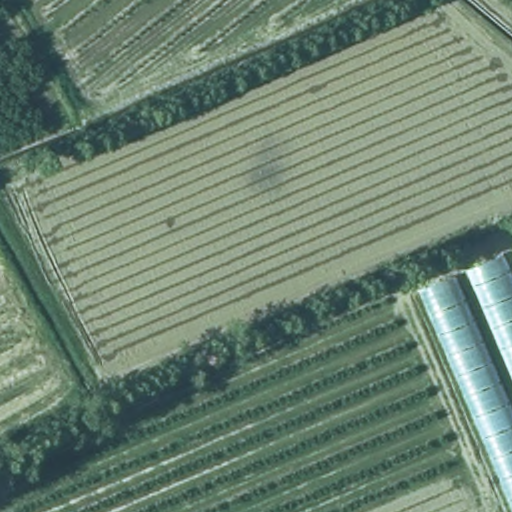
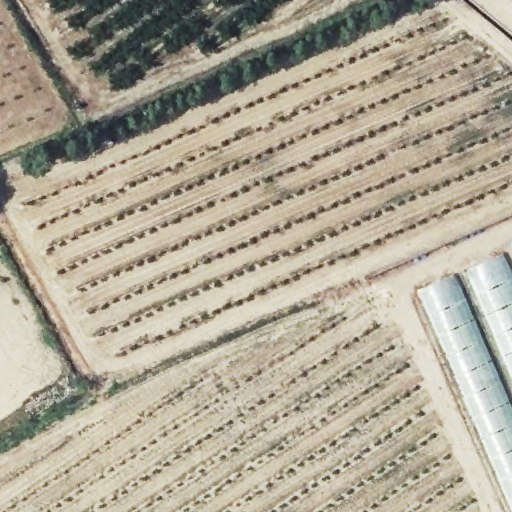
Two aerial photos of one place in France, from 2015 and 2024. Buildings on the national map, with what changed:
unchanged [(415,290),(512,249),(512,512),(507,512),(415,290)]

